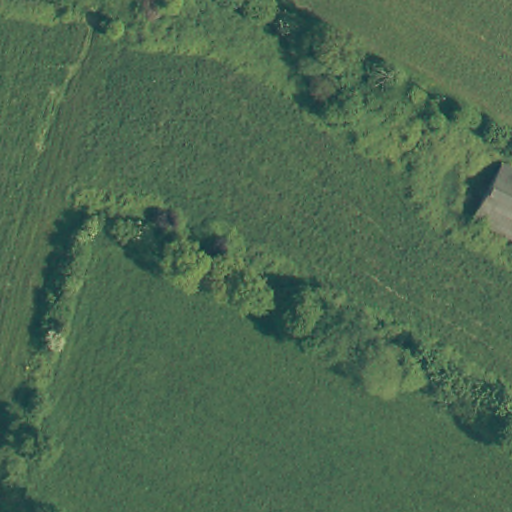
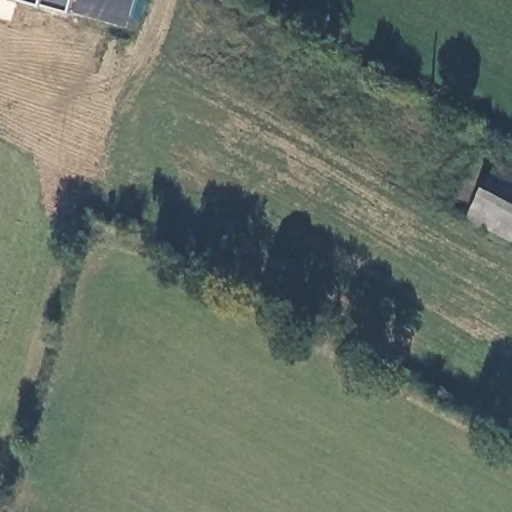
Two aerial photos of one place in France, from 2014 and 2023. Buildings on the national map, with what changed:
new [(69,10),(34,0),(72,0),(69,10)]
unchanged [(468,217),(499,158),(512,165),(512,238),(468,217)]

